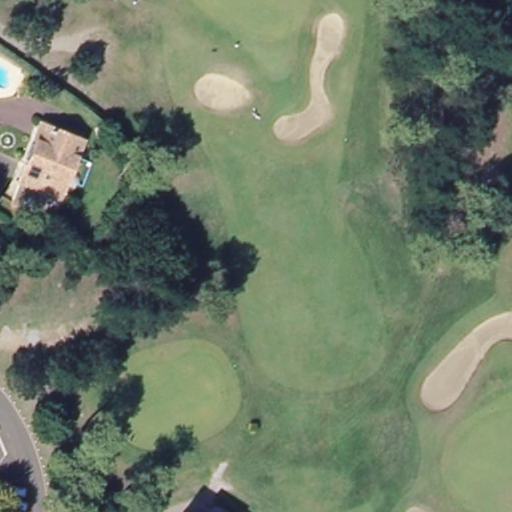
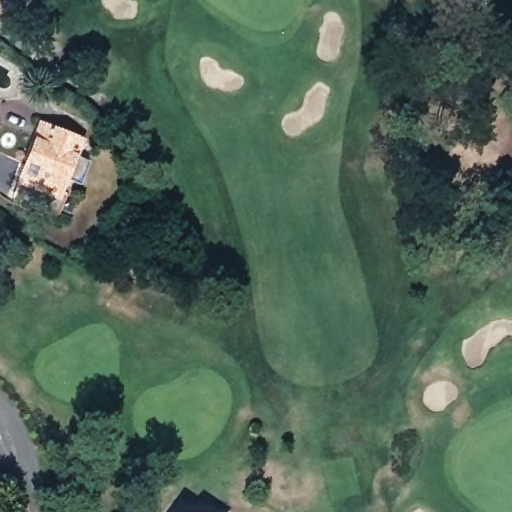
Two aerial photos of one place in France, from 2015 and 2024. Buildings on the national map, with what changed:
unchanged [(56,198),(64,201),(54,224),(7,203),(34,139),(39,125),(48,128),(78,141),(56,198)]

